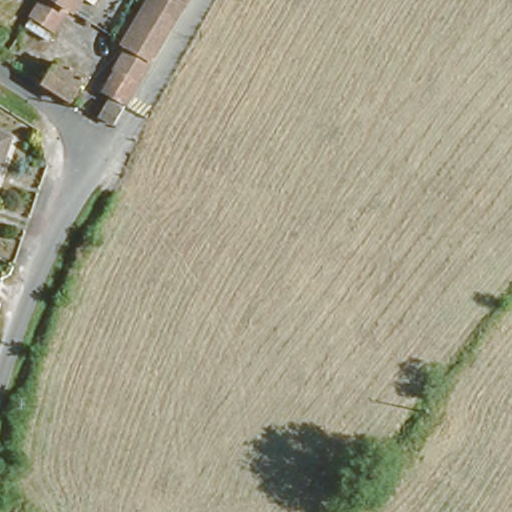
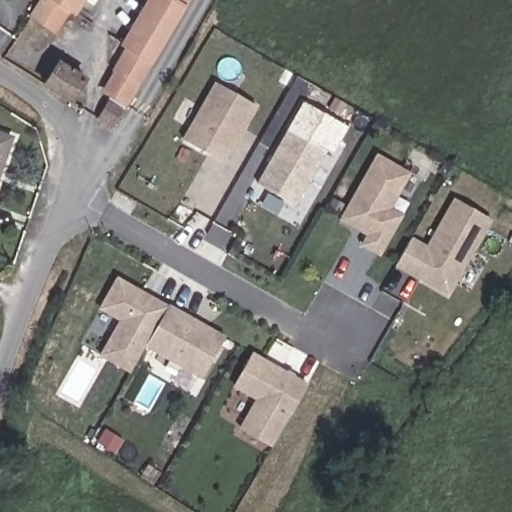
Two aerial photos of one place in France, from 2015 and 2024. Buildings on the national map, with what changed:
unchanged [(41,0),(75,0),(54,31),(31,15),(41,0)]
unchanged [(114,75),(109,72),(129,41),(122,37),(145,0),(182,0),(115,111),(99,102),(114,75)]
unchanged [(46,90),(63,64),(85,77),(68,105),(46,90)]
new [(216,81),(255,102),(223,160),(184,137),(216,81)]
new [(289,129),(327,150),(295,206),(255,184),(289,129)]
unchanged [(0,156),(0,137),(6,139),(0,156)]
new [(377,155),(408,173),(389,208),(401,216),(379,255),(362,245),(368,235),(341,220),(377,155)]
new [(486,220),(445,291),(397,263),(410,241),(429,251),(454,202),(486,220)]
new [(224,336),(205,377),(144,346),(129,375),(98,358),(119,320),(97,307),(114,277),(224,336)]
new [(254,353),(309,383),(275,444),(255,433),(272,404),(237,385),(254,353)]
demolished [(381,478),(427,416),(448,432),(402,494),(381,478)]

